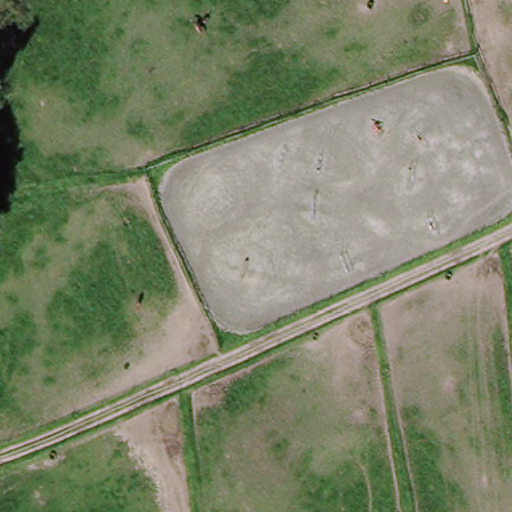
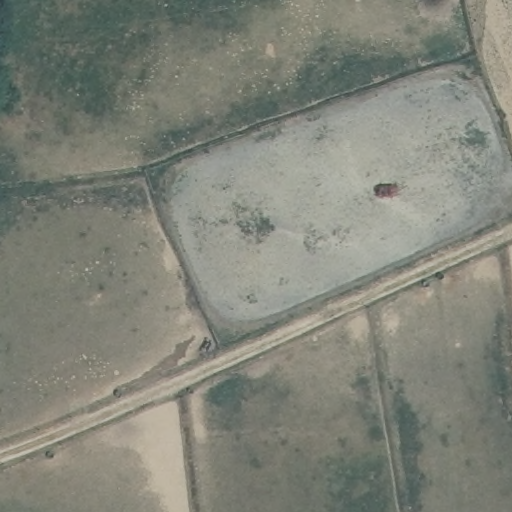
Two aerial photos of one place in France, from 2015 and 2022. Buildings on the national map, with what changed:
[]

